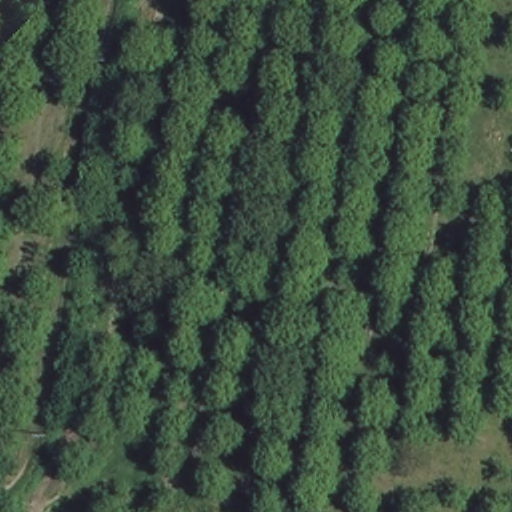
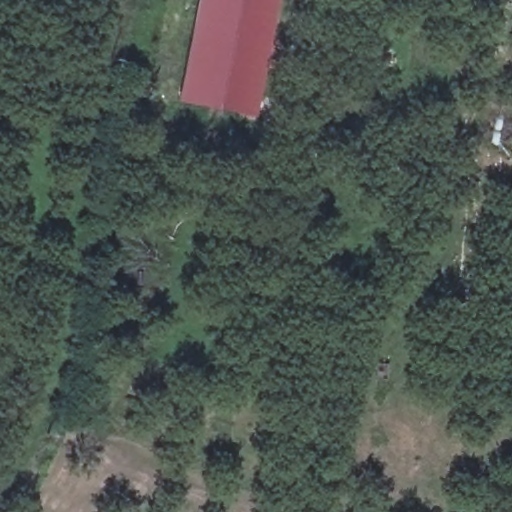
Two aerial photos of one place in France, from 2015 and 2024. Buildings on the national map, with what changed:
new [(178,101),(198,0),(279,0),(257,119),(178,101)]

